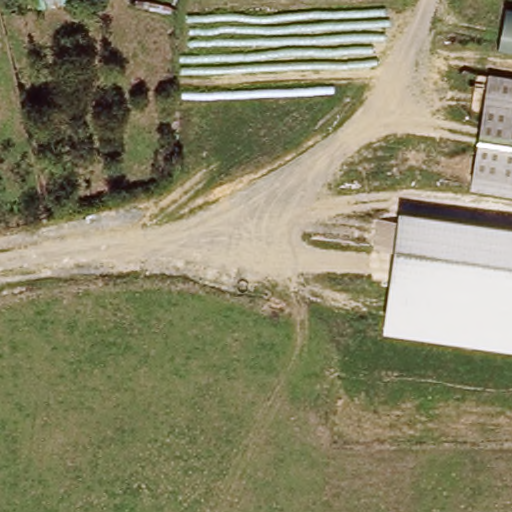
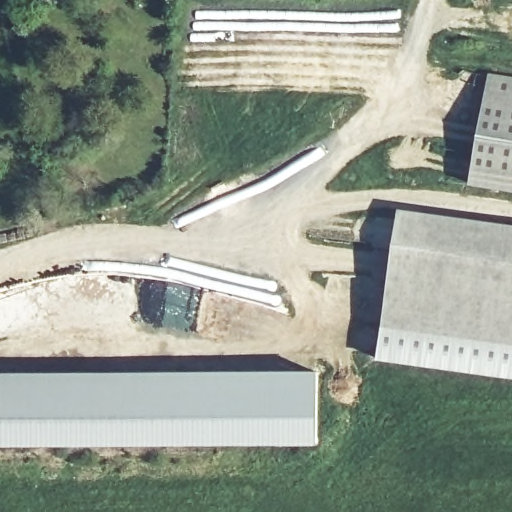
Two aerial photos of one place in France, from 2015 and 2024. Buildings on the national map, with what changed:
unchanged [(512,8),(512,50),(494,46),(503,6),(512,8)]
unchanged [(469,183),(487,75),(512,79),(512,191),(469,183)]
unchanged [(398,212),(512,228),(512,344),(383,325),(398,212)]
new [(379,361),(383,325),(512,344),(512,380),(379,361)]
new [(0,448),(0,373),(321,372),(320,446),(0,448)]

